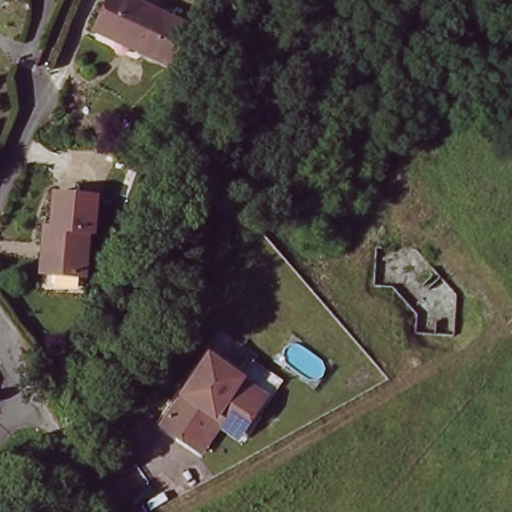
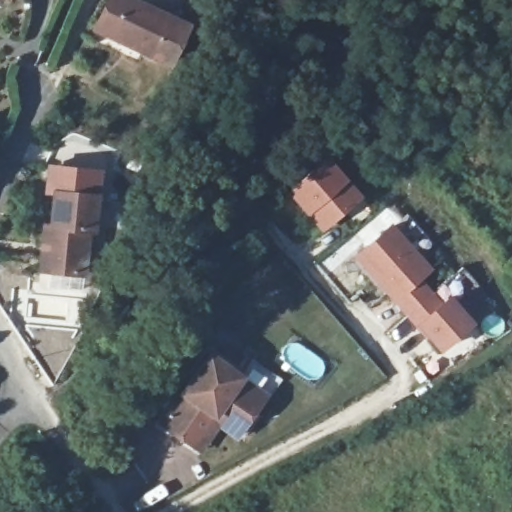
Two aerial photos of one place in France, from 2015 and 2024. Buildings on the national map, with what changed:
unchanged [(0,8),(0,0),(7,0),(3,10),(0,8)]
unchanged [(170,61),(143,49),(145,44),(99,24),(110,0),(137,0),(187,21),(170,61)]
new [(317,161),(354,198),(321,232),(284,196),(317,161)]
unchanged [(42,244),(43,226),(50,226),(54,192),(94,196),(92,231),(87,231),(82,275),(48,272),(40,271),(42,244)]
demolished [(390,202),(432,245),(432,286),(393,285),(393,267),(367,241),(349,241),(349,202),(390,202)]
new [(407,316),(392,299),(354,256),(392,221),(432,268),(422,279),(434,293),(438,303),(449,294),(474,323),(440,353),(425,338),(426,339),(407,316)]
unchanged [(209,352),(265,391),(236,437),(217,426),(202,452),(162,428),(209,352)]

